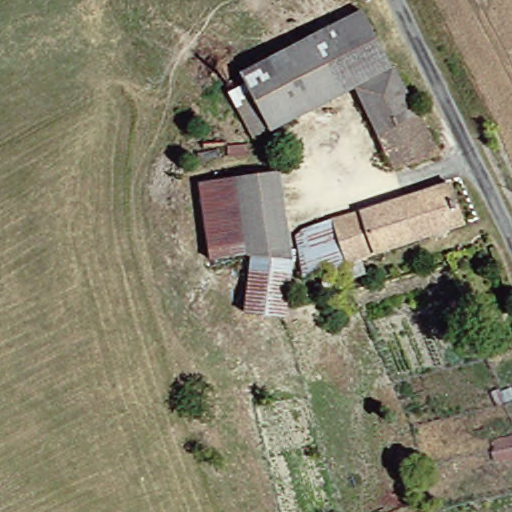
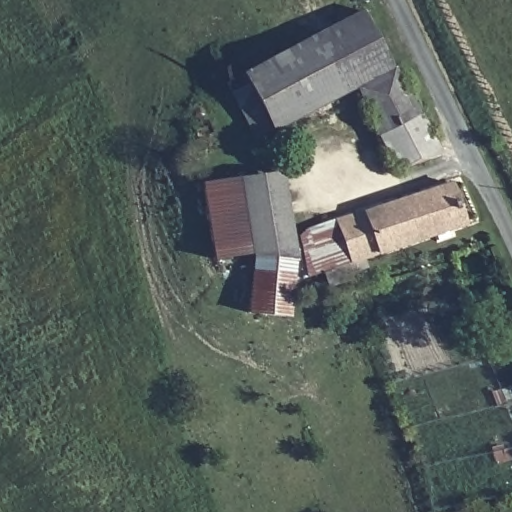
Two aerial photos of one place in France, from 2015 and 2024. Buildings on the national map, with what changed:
unchanged [(335,93),(307,37),(356,14),(385,68),(348,89),(335,93)]
unchanged [(262,131),(235,75),(307,37),(335,93),(262,131)]
unchanged [(385,68),(435,156),(389,172),(348,89),(385,68)]
unchanged [(208,265),(199,194),(268,182),(281,264),(244,260),(208,265)]
unchanged [(458,229),(368,258),(341,267),(295,281),(287,236),(328,224),(352,216),(445,186),(458,229)]
unchanged [(281,264),(276,319),(237,313),(244,260),(281,264)]

